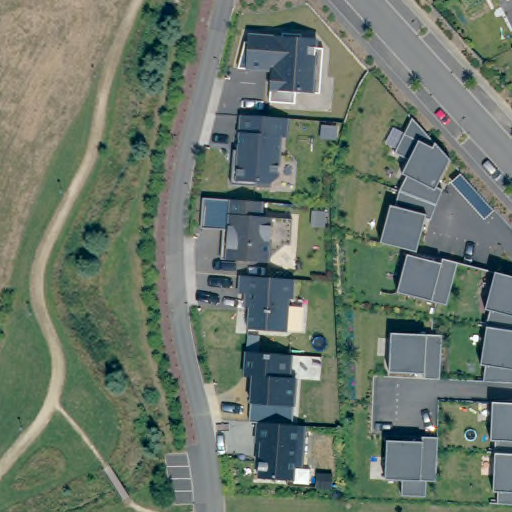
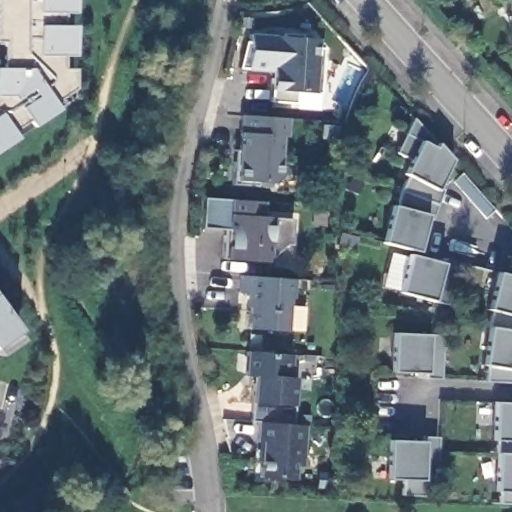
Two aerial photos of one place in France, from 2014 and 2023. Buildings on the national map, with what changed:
new [(65,11),(54,12),(53,26),(66,25),(66,55),(53,55),(52,69),(64,69),(64,96),(48,107),(23,126),(19,120),(1,132),(5,138),(0,142),(0,0),(65,0),(65,11)]
unchanged [(238,68),(245,42),(248,42),(249,34),(282,37),(282,33),(301,34),(301,38),(316,39),(316,48),(323,48),(320,94),(296,92),(295,104),(269,102),(271,78),(271,71),(238,68)]
unchanged [(238,150),(241,115),(288,118),(287,137),(281,137),(277,183),(257,182),(256,186),(231,184),(232,161),(233,149),(238,150)]
unchanged [(442,190),(436,205),(399,191),(406,176),(402,174),(409,160),(395,153),(412,118),(450,160),(439,181),(436,187),(442,190)]
unchanged [(380,242),(390,205),(395,206),(399,191),(436,205),(431,218),(431,220),(430,220),(425,218),(424,225),(416,252),(380,242)]
unchanged [(201,228),(203,198),(263,202),(262,217),(293,219),(291,245),(285,244),(269,258),(269,262),(221,259),(223,235),(223,230),(201,228)]
unchanged [(444,259),(458,262),(449,296),(446,305),(437,303),(397,292),(407,254),(434,261),(441,263),(442,258),(444,259)]
unchanged [(485,326),(490,311),(485,309),(495,272),(498,273),(512,277),(512,331),(486,327),(485,326)]
unchanged [(294,279),(292,298),(288,298),(286,331),(248,328),(250,294),(238,293),(240,275),(294,279)]
new [(12,331),(16,338),(0,349),(0,313),(12,331)]
unchanged [(483,382),(485,366),(480,365),(486,327),(512,331),(512,383),(497,382),(483,382)]
unchanged [(389,372),(391,333),(432,335),(442,335),(440,379),(424,378),(424,373),(417,373),(389,372)]
unchanged [(290,377),(296,378),(293,424),(257,422),(252,421),(249,421),(253,376),(244,375),(246,351),(292,354),(290,377)]
unchanged [(495,441),(490,440),(492,402),(512,403),(512,454),(494,453),(495,441)]
unchanged [(305,425),(302,466),(294,466),(293,480),(258,477),(261,442),(256,442),(257,422),(293,424),(305,425)]
unchanged [(401,495),(402,480),(385,479),(387,440),(415,441),(422,441),(422,436),(424,436),(437,437),(438,437),(437,450),(436,481),(426,481),(426,496),(401,495)]
unchanged [(498,491),(493,491),(494,453),(512,454),(512,505),(497,504),(498,491)]

